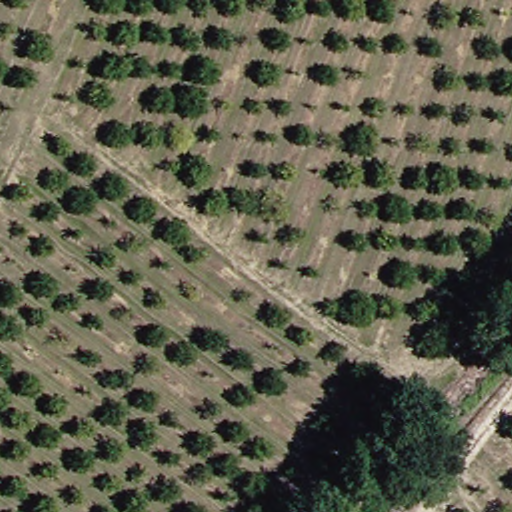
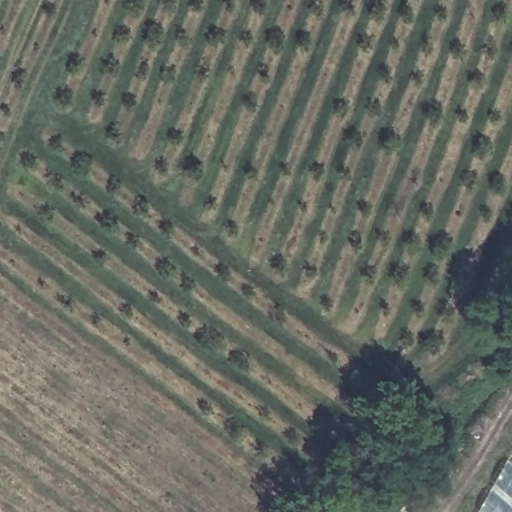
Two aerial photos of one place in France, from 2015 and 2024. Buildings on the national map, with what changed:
new [(512,458),(512,512),(482,512),(512,458)]

